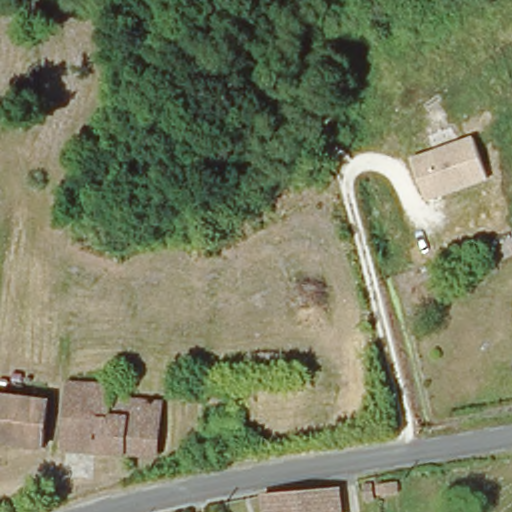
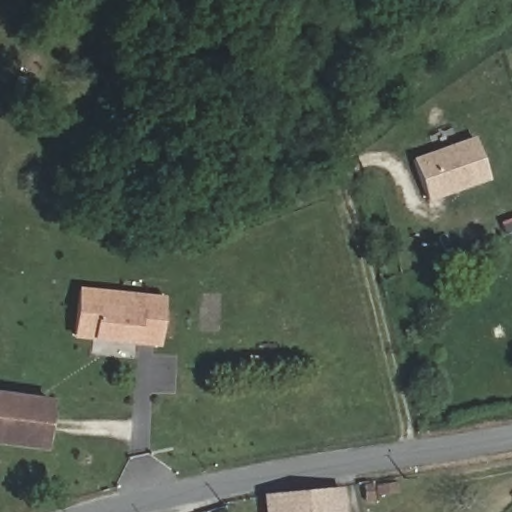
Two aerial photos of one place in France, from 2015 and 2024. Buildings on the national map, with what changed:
unchanged [(429,202),(411,157),(474,136),(490,180),(429,202)]
new [(72,337),(77,286),(165,295),(160,347),(72,337)]
demolished [(65,447),(70,383),(113,387),(113,384),(124,385),(122,397),(135,398),(135,400),(160,402),(157,452),(157,455),(150,455),(65,447)]
unchanged [(0,446),(0,398),(25,401),(20,448),(0,446)]
unchanged [(51,403),(46,450),(20,448),(25,401),(51,403)]
demolished [(215,430),(216,411),(240,412),(239,421),(238,437),(214,435),(215,430)]
unchanged [(397,481),(398,492),(378,493),(377,482),(397,481)]
unchanged [(366,497),(365,483),(375,483),(375,496),(366,497)]
unchanged [(265,502),(265,500),(317,495),(340,492),(341,512),(267,512),(265,502)]

